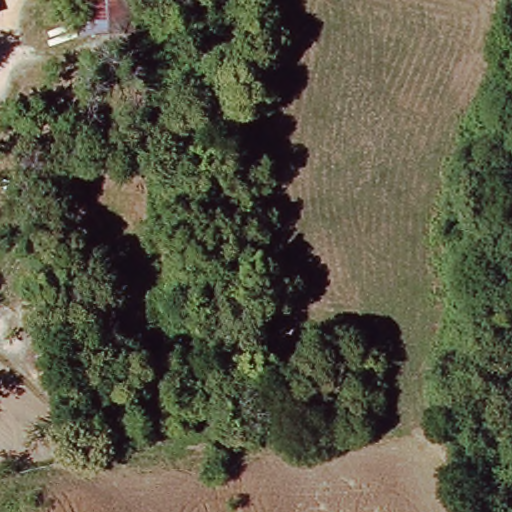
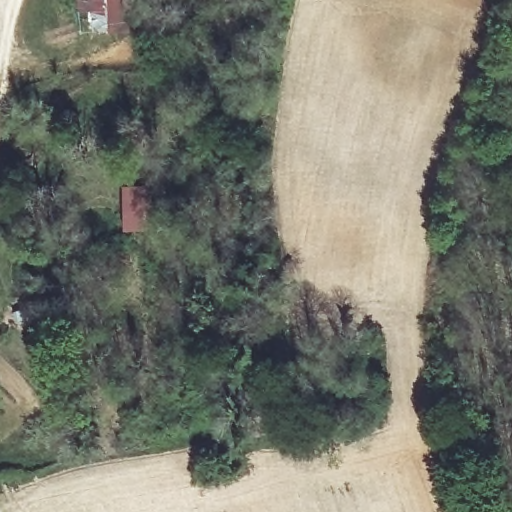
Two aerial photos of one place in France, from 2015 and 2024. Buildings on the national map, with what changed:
unchanged [(125,25),(72,26),(71,0),(124,0),(125,25)]

